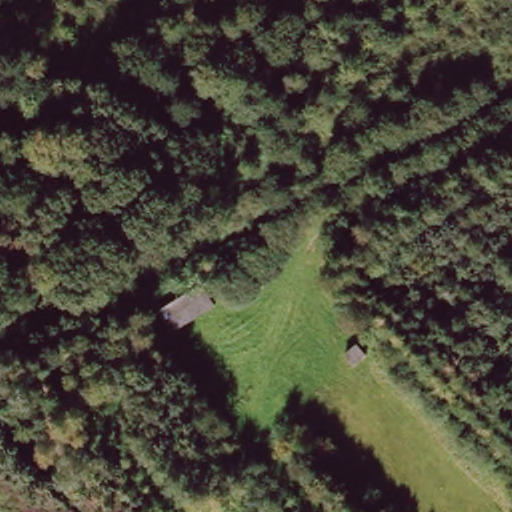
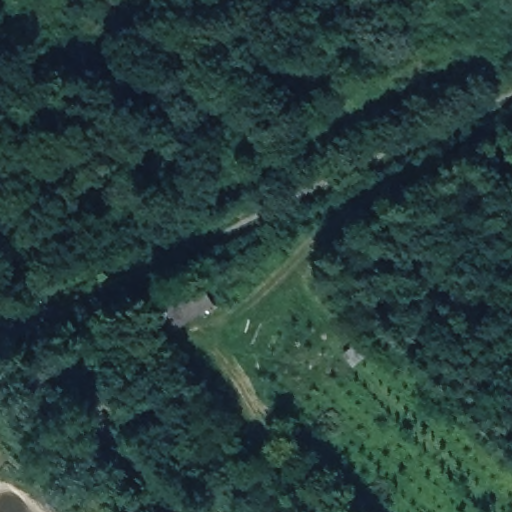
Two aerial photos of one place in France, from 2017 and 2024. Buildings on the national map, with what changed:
unchanged [(201,287),(216,307),(172,335),(163,324),(170,319),(165,310),(201,287)]

